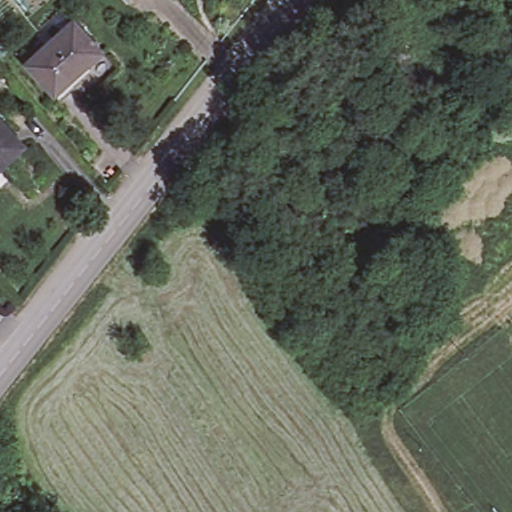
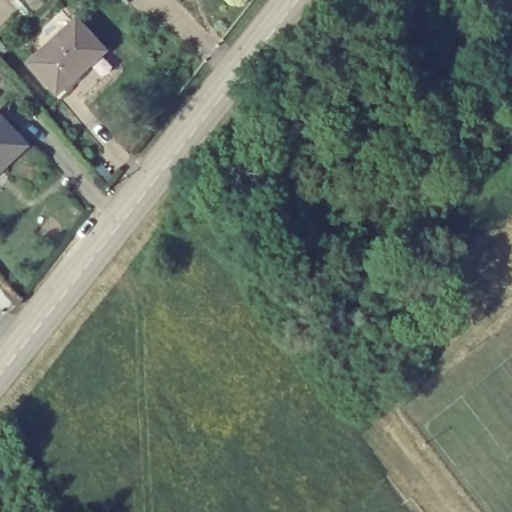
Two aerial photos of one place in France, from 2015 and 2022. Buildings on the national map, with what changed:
unchanged [(74,17),(101,47),(51,90),(25,60),(74,17)]
unchanged [(27,140),(0,165),(0,110),(27,140)]

